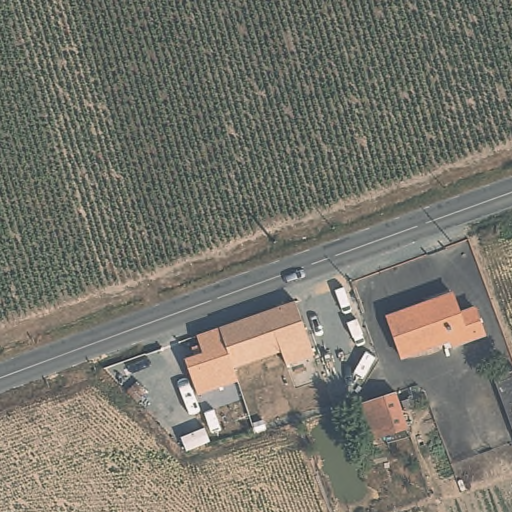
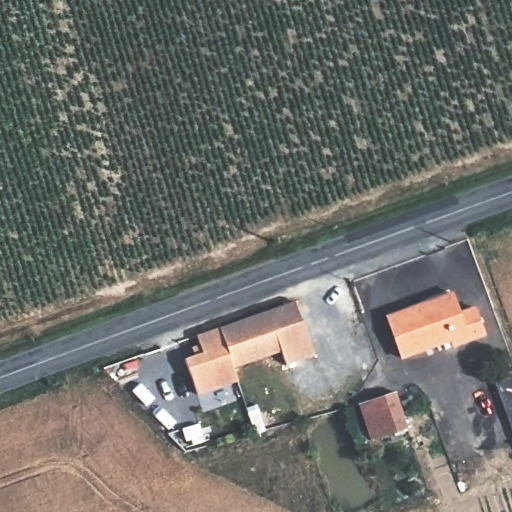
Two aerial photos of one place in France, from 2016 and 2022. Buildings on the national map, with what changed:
unchanged [(460,308),(472,305),(482,331),(453,341),(452,336),(402,354),(387,313),(452,291),(460,308)]
unchanged [(315,354),(285,366),(281,352),(235,369),(238,378),(197,392),(184,358),(202,353),(196,334),(294,300),(315,354)]
unchanged [(494,375),(512,369),(512,428),(494,375)]
unchanged [(358,402),(393,391),(406,427),(371,437),(358,402)]

